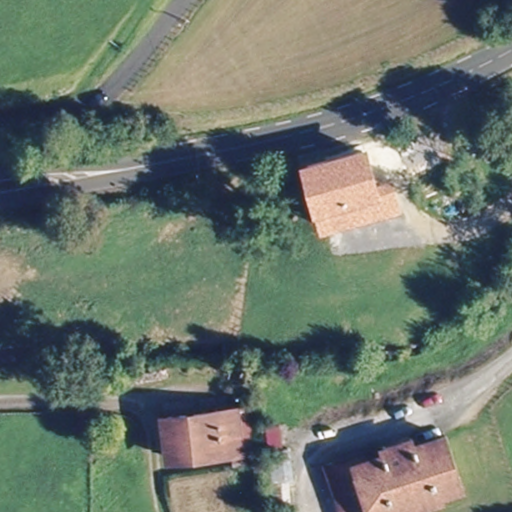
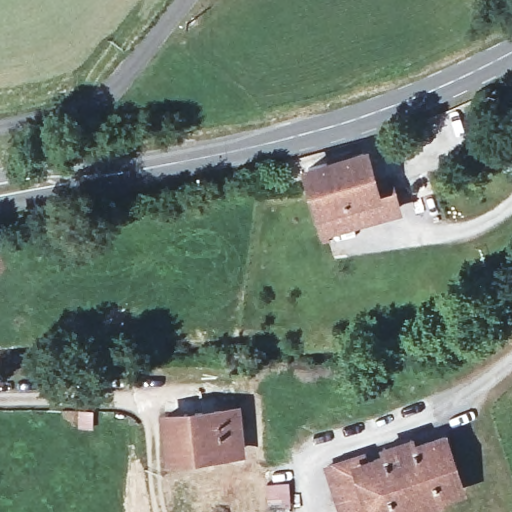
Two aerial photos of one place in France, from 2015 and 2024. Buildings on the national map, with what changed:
unchanged [(348,154),(382,145),(390,181),(390,188),(357,196),(348,154)]
unchanged [(298,185),(294,165),(348,152),(348,154),(357,196),(304,209),(298,185)]
unchanged [(398,188),(403,212),(324,234),(318,209),(398,188)]
unchanged [(176,414),(236,410),(238,453),(179,456),(176,414)]
unchanged [(380,511),(381,512),(340,512),(327,461),(360,451),(361,459),(381,453),(379,446),(409,437),(412,446),(447,434),(460,488),(441,494),(443,505),(417,512),(391,512),(390,508),(380,511)]

